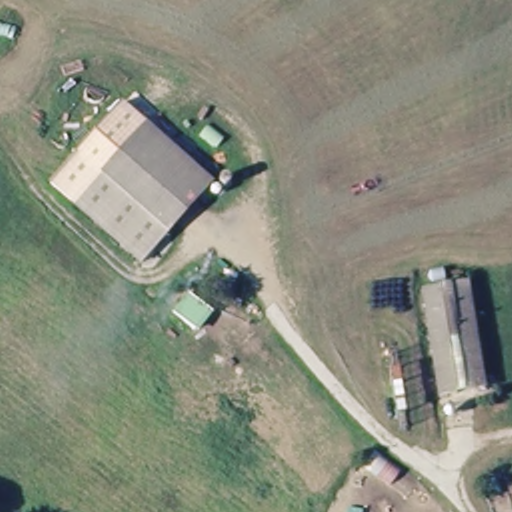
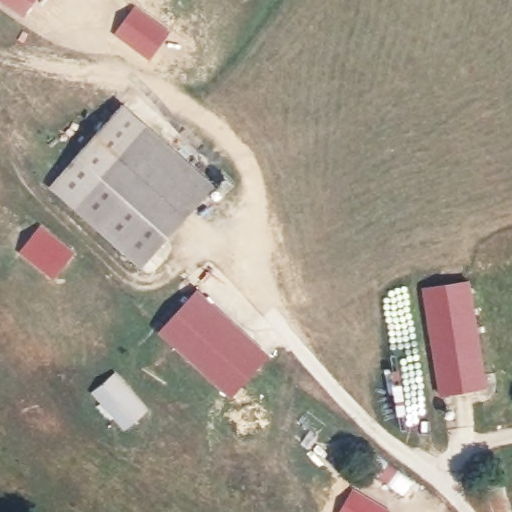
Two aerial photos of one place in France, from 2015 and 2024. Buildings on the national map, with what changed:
new [(24,18),(0,2),(0,0),(36,0),(24,18)]
new [(170,31),(149,59),(114,34),(134,5),(170,31)]
unchanged [(69,205),(50,188),(123,104),(145,123),(69,205)]
unchanged [(145,123),(210,188),(140,268),(69,205),(145,123)]
unchanged [(434,399),(428,286),(475,284),(480,394),(434,399)]
new [(269,354),(230,398),(156,332),(196,288),(269,354)]
new [(389,504),(385,512),(335,512),(350,483),(389,504)]

